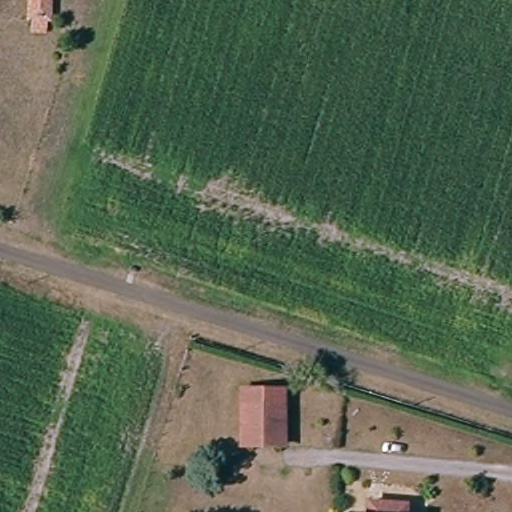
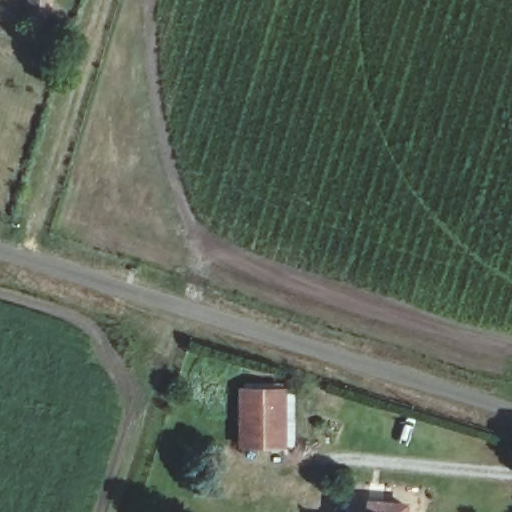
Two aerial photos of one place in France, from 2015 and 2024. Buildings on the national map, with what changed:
unchanged [(25,10),(46,10),(43,39),(24,35),(25,10)]
unchanged [(238,391),(282,392),(282,449),(240,452),(238,391)]

